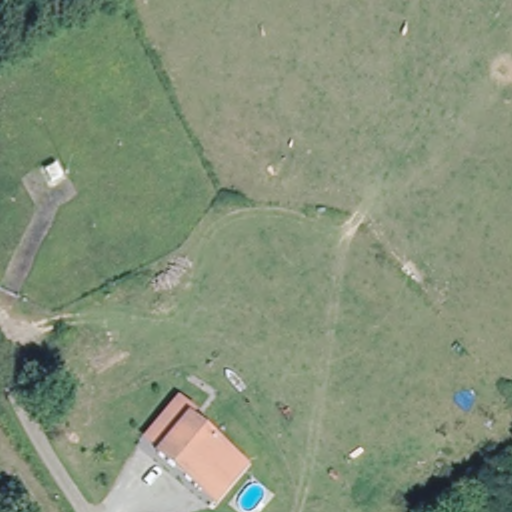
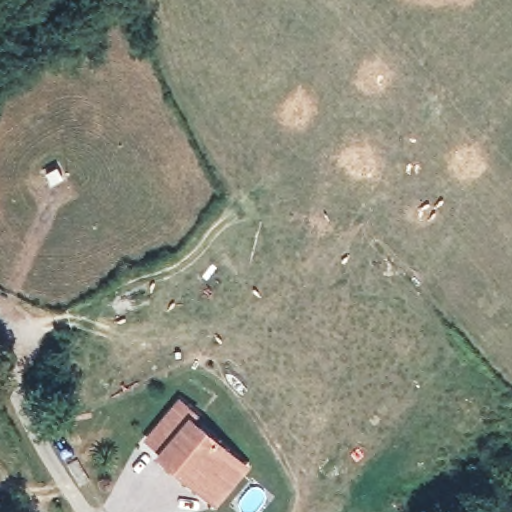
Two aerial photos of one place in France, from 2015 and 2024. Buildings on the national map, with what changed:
unchanged [(209,502),(196,490),(155,454),(158,450),(143,436),(177,399),(192,412),(186,419),(227,455),(240,467),(209,502)]

